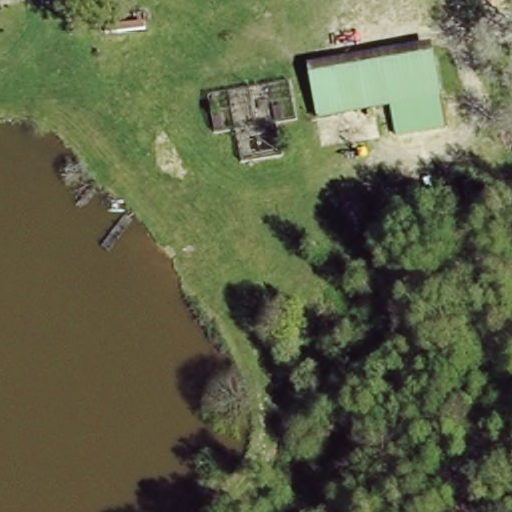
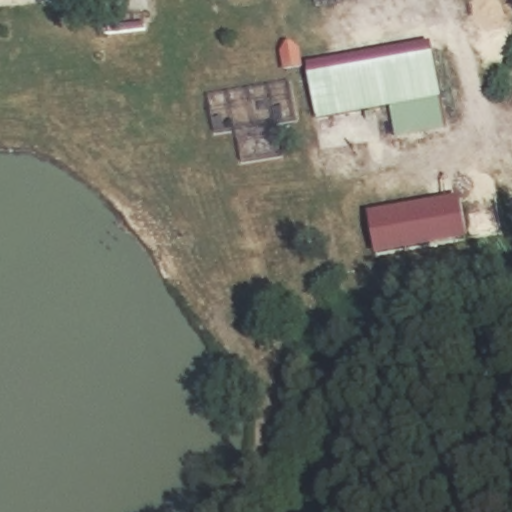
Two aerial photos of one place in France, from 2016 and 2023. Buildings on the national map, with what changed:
unchanged [(302,68),(425,46),(439,126),(392,134),(389,111),(312,123),(302,68)]
new [(377,258),(370,214),(462,199),(470,241),(377,258)]

